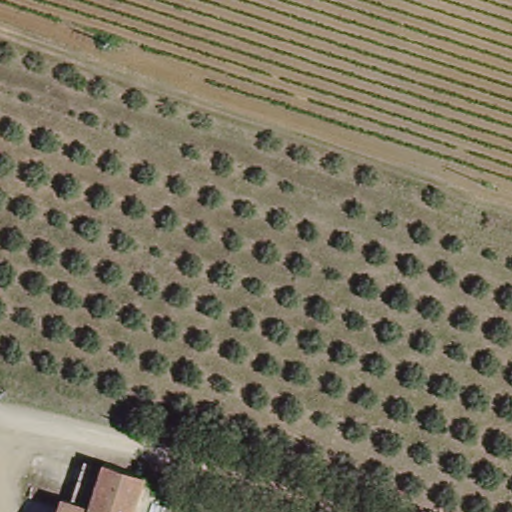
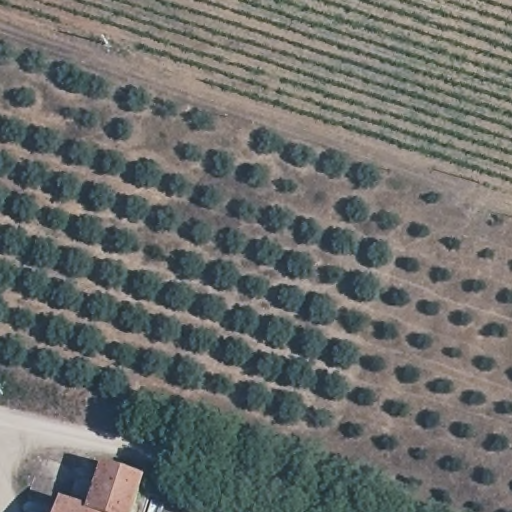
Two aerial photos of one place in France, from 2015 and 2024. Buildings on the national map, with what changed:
unchanged [(87,492),(91,478),(98,480),(101,471),(140,484),(132,512),(88,512),(94,495),(87,492)]
unchanged [(79,512),(60,512),(62,506),(79,512)]

